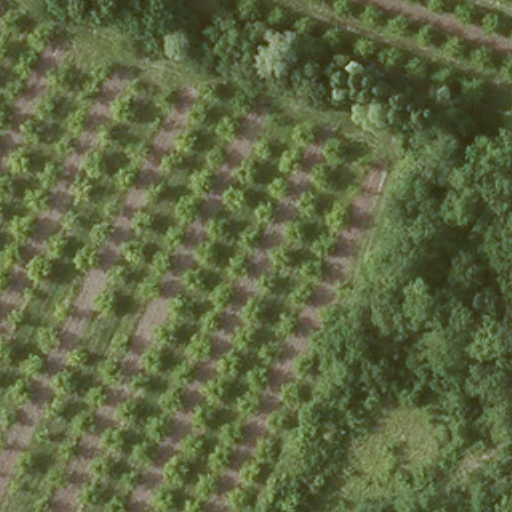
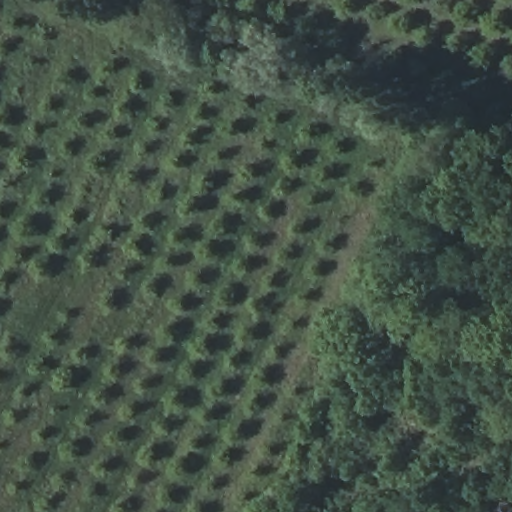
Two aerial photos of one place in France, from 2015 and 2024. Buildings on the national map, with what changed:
[]

